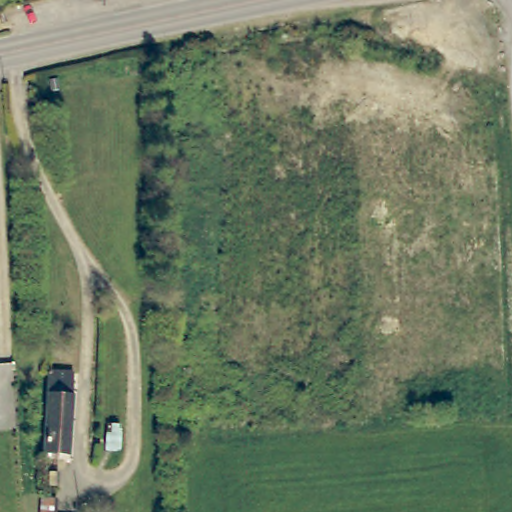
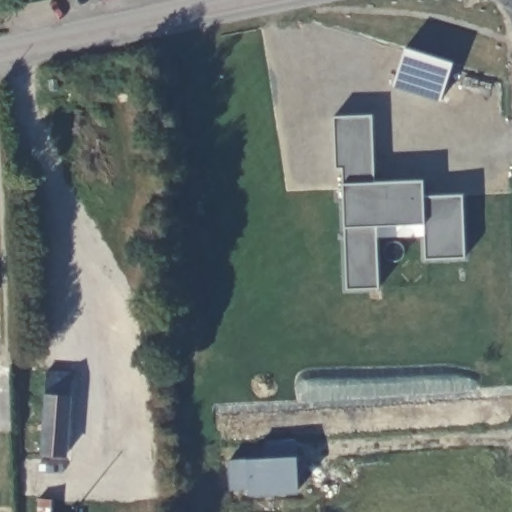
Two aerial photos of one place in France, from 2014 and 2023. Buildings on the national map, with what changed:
new [(442,101),(393,87),(406,47),(454,62),(442,101)]
new [(375,180),(423,177),(423,196),(464,192),(467,256),(427,258),(425,221),(377,223),(381,285),(349,287),(346,225),(345,181),(343,167),(336,167),(334,116),(372,115),(375,180)]
unchanged [(77,368),(71,448),(46,447),(51,367),(77,368)]
unchanged [(54,501),(54,512),(37,512),(38,498),(54,501)]

